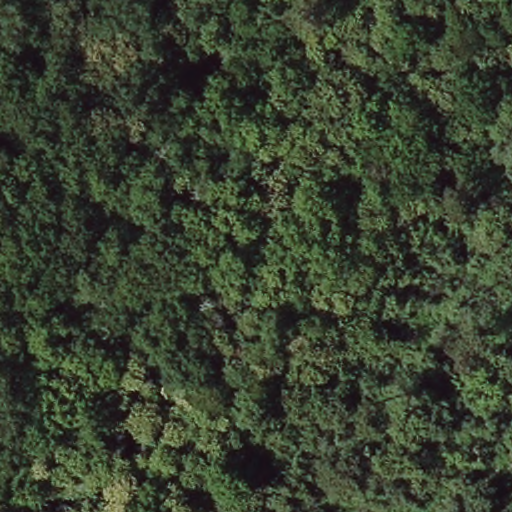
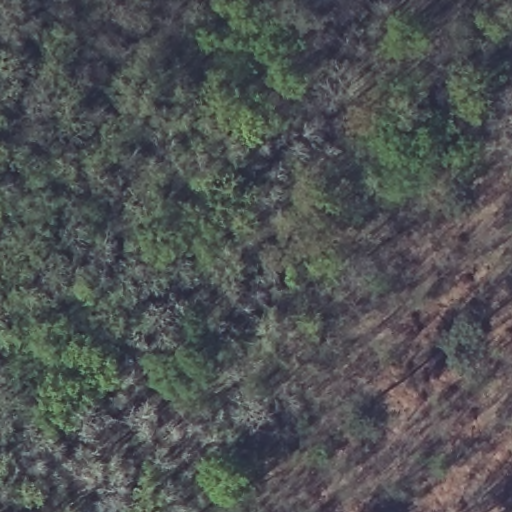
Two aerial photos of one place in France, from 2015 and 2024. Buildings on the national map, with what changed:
[]

